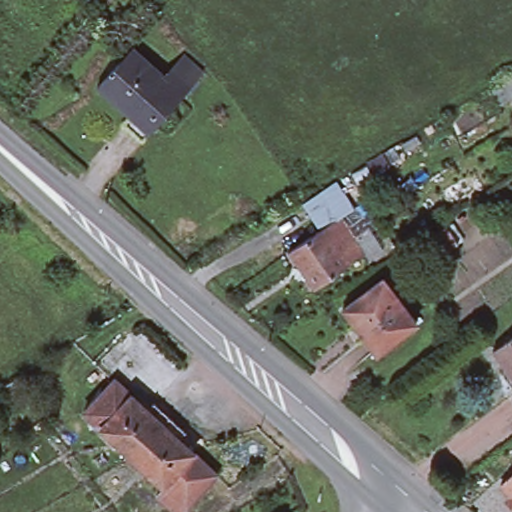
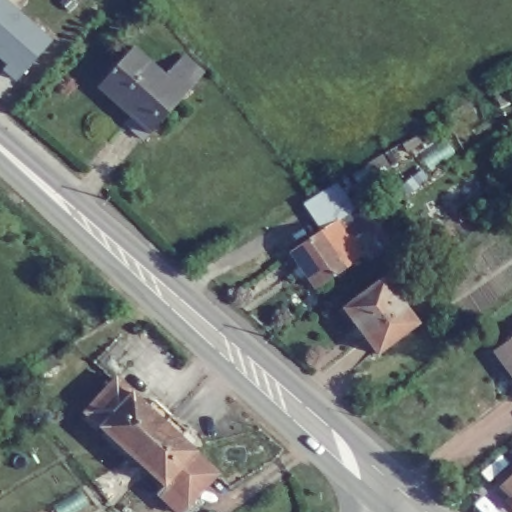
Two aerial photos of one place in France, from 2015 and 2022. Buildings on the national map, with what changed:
new [(16,81),(1,70),(6,65),(0,59),(0,0),(7,0),(52,39),(16,81)]
unchanged [(97,87),(132,47),(163,75),(170,68),(184,52),(205,70),(190,86),(149,132),(143,139),(125,122),(130,116),(97,87)]
unchanged [(318,230),(300,204),(333,180),(351,206),(335,218),(348,238),(363,228),(378,250),(363,260),(359,254),(343,265),(310,288),(284,252),(318,230)]
unchanged [(385,281),(417,325),(378,355),(345,310),(385,281)]
unchanged [(493,353),(512,340),(512,378),(493,353)]
unchanged [(21,373),(31,389),(14,399),(5,383),(21,373)]
unchanged [(507,383),(512,380),(512,389),(507,383)]
unchanged [(153,405),(169,420),(130,462),(100,434),(84,420),(115,386),(131,400),(145,414),(153,405)]
unchanged [(185,435),(177,442),(195,458),(164,493),(130,462),(169,420),(185,435)]
unchanged [(184,512),(170,512),(157,501),(164,493),(195,458),(216,478),(184,512)]
unchanged [(501,485),(512,475),(512,497),(501,485)]

